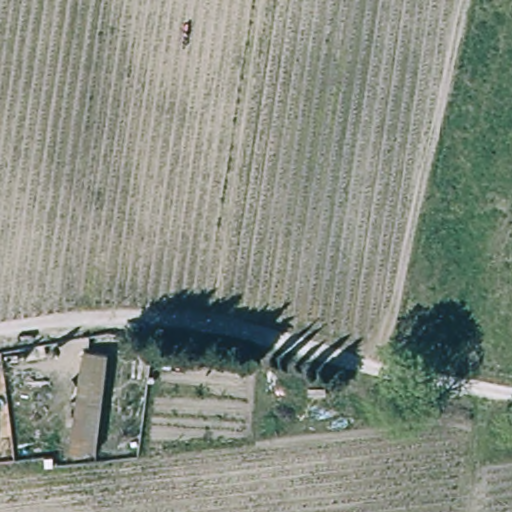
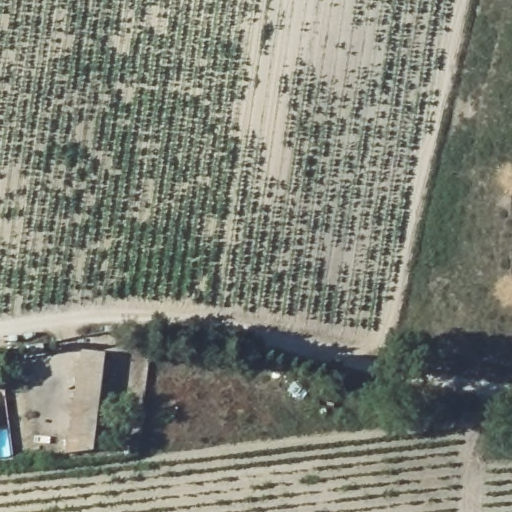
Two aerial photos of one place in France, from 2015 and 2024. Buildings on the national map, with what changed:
unchanged [(94,451),(69,453),(82,351),(105,354),(94,451)]

